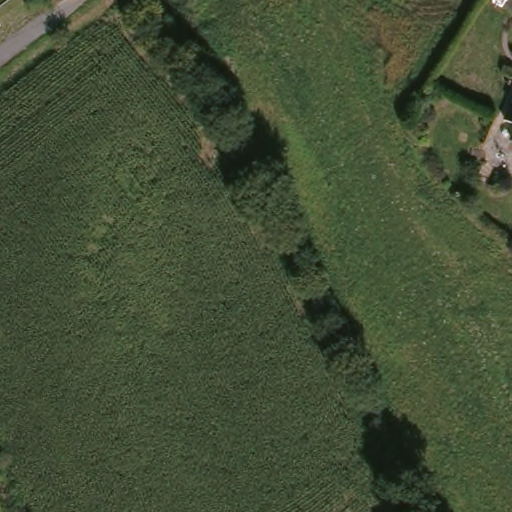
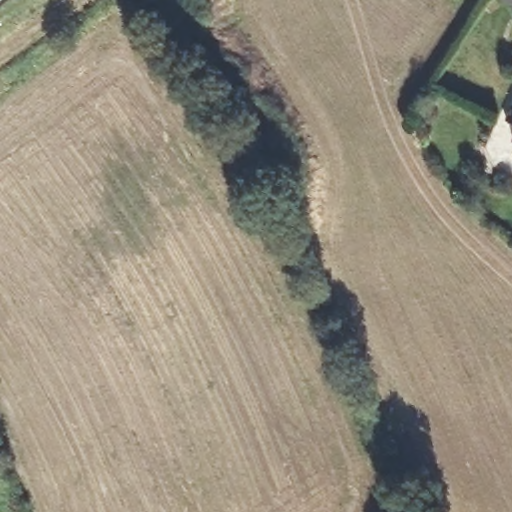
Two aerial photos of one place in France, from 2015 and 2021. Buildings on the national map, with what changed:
unchanged [(512,105),(512,124),(505,121),(512,105)]

